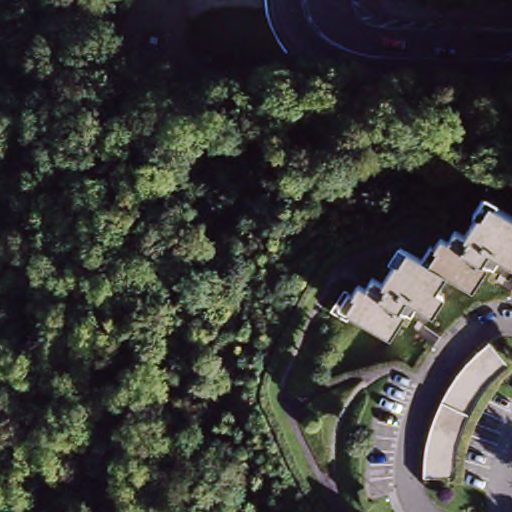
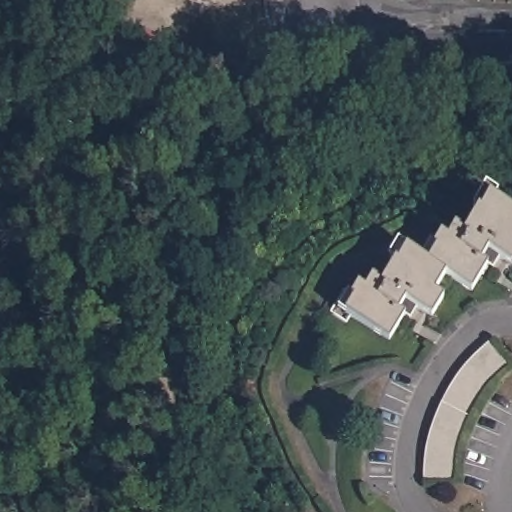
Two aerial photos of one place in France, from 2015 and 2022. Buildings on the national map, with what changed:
unchanged [(156,31),(156,38),(148,39),(148,31),(156,31)]
unchanged [(486,247),(479,258),(487,264),(469,290),(441,271),(423,259),(440,233),(444,236),(453,225),(462,229),(474,211),(479,214),(489,201),(512,217),(512,264),(486,247)]
unchanged [(429,289),(438,295),(426,312),(399,294),(392,304),(400,310),(383,336),(340,306),(349,294),(348,292),(356,280),(362,284),(369,274),(376,278),(391,256),(394,259),(404,246),(423,259),(441,271),(429,289)]
unchanged [(424,448),(426,442),(428,434),(429,428),(431,423),(434,416),(436,410),(438,407),(440,403),(442,399),(445,394),(449,387),(452,383),(457,377),(464,367),(469,361),(473,357),(479,352),(484,347),(491,341),(493,340),(511,363),(507,367),(502,371),(494,377),(489,382),(484,388),(478,394),(474,400),(471,405),(467,411),(464,415),(461,420),(459,425),(457,430),(456,434),(454,439),(454,444),(453,449),(452,454),(451,457),(451,460),(450,463),(449,467),(449,471),(421,468),(424,448)]

